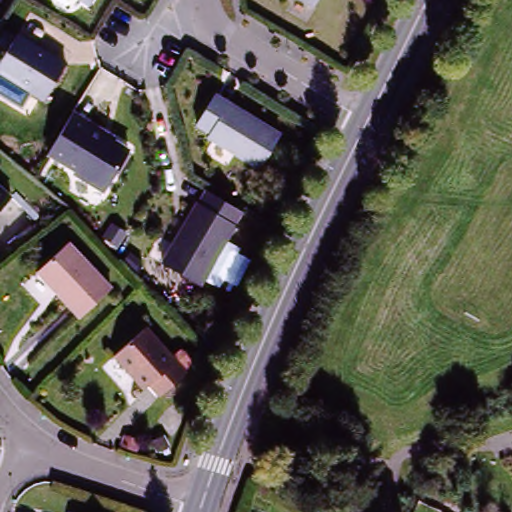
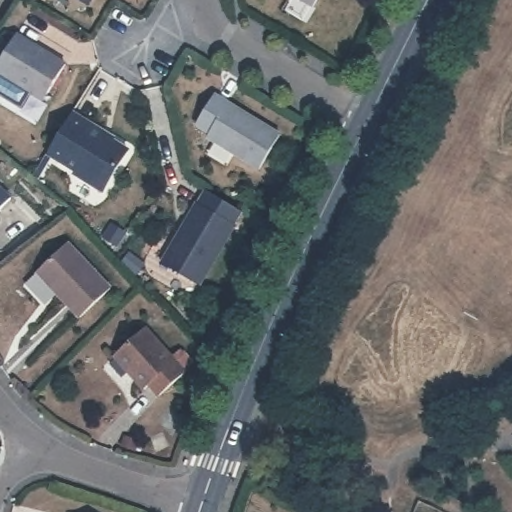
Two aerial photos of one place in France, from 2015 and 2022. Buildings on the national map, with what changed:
unchanged [(86,4),(78,0),(89,0),(86,4)]
unchanged [(318,7),(306,0),(322,0),(318,7)]
unchanged [(45,106),(0,79),(0,69),(17,39),(67,69),(45,106)]
unchanged [(285,137),(263,174),(214,143),(216,139),(201,130),(221,98),(285,137)]
unchanged [(105,195),(75,177),(78,173),(51,156),(69,128),(75,116),(91,126),(90,129),(130,154),(105,195)]
unchanged [(287,187),(275,181),(282,168),(293,174),(287,187)]
unchanged [(0,207),(0,188),(10,196),(0,207)]
unchanged [(160,264),(197,204),(200,206),(207,193),(243,215),(235,228),(236,228),(200,288),(160,264)]
unchanged [(106,223),(121,232),(111,247),(97,238),(106,223)]
unchanged [(81,320),(39,275),(70,246),(112,291),(81,320)]
unchanged [(174,357),(181,350),(195,365),(187,372),(160,396),(149,385),(144,389),(115,357),(147,327),(174,357)]
unchanged [(170,450),(158,456),(152,446),(164,440),(170,450)]
unchanged [(136,455),(123,451),(125,442),(139,447),(136,455)]

